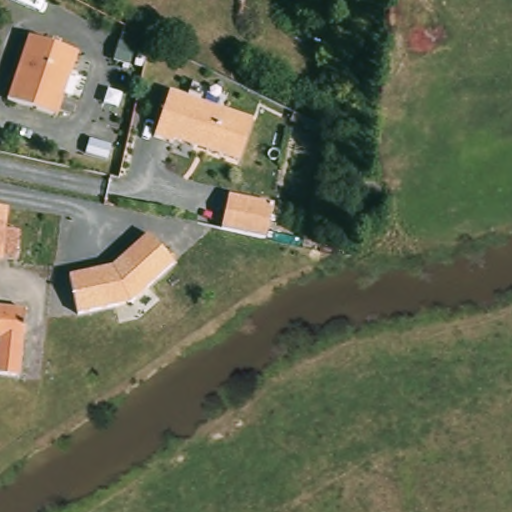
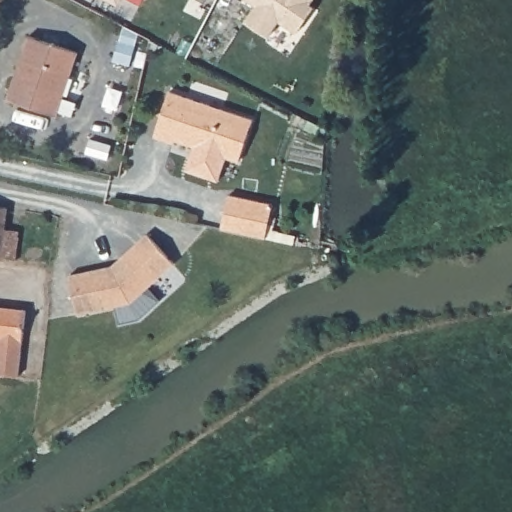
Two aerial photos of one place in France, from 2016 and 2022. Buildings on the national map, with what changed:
new [(108,0),(122,0),(119,5),(108,0)]
new [(314,4),(318,7),(301,33),(283,22),(272,38),(249,23),(260,6),(249,0),(317,0),(314,4)]
unchanged [(74,54),(52,117),(4,101),(10,81),(17,60),(25,38),(74,54)]
unchanged [(249,121),(235,162),(170,141),(169,144),(150,138),(165,93),(249,121)]
unchanged [(233,196),(277,205),(270,239),(233,232),(225,230),(233,196)]
unchanged [(22,210),(21,221),(10,220),(9,231),(22,232),(19,262),(0,261),(0,208),(11,209),(22,210)]
unchanged [(132,303),(75,315),(66,274),(112,265),(147,233),(173,263),(132,303)]
unchanged [(26,340),(0,338),(0,308),(29,311),(26,340)]

